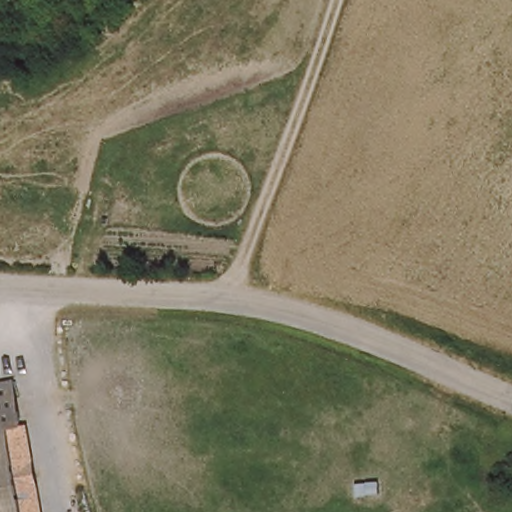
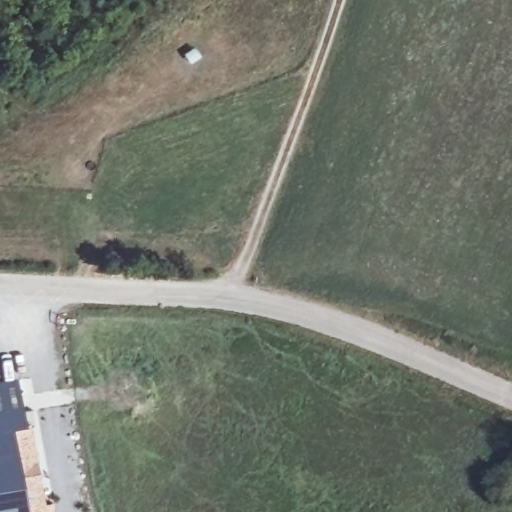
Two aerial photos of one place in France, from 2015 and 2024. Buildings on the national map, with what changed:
unchanged [(20,374),(30,422),(17,425),(34,512),(0,512),(0,378),(20,374)]

